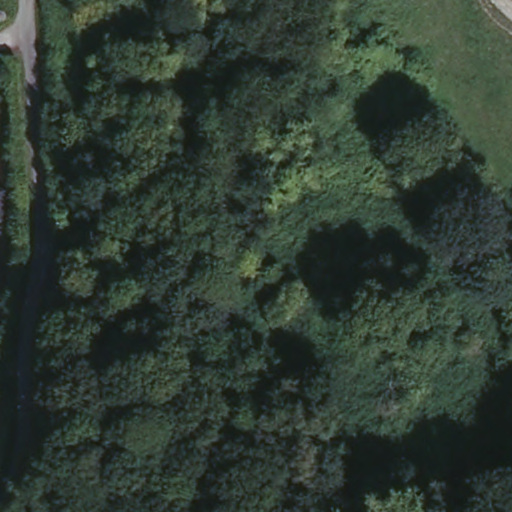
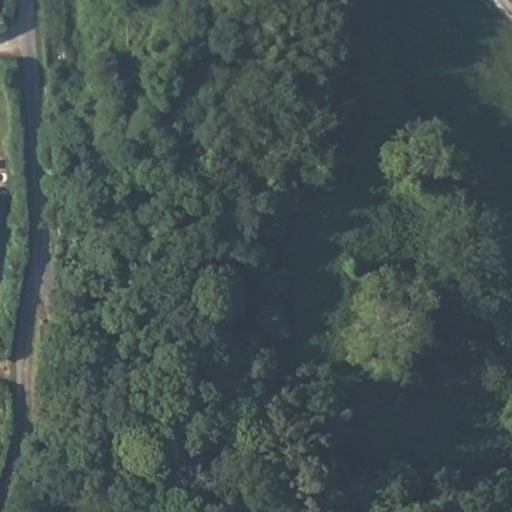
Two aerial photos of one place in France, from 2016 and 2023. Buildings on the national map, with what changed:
unchanged [(12,182),(8,214),(0,214),(0,181),(12,182)]

